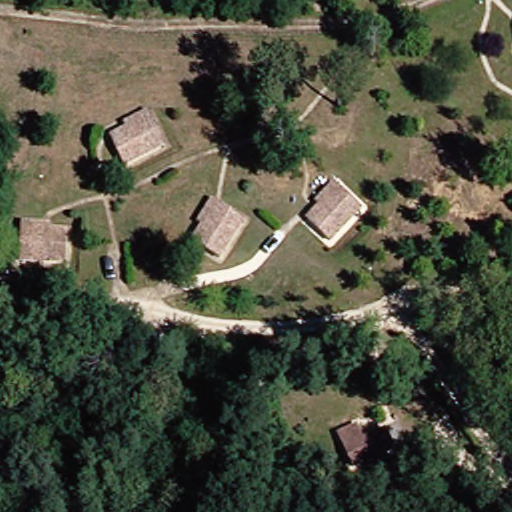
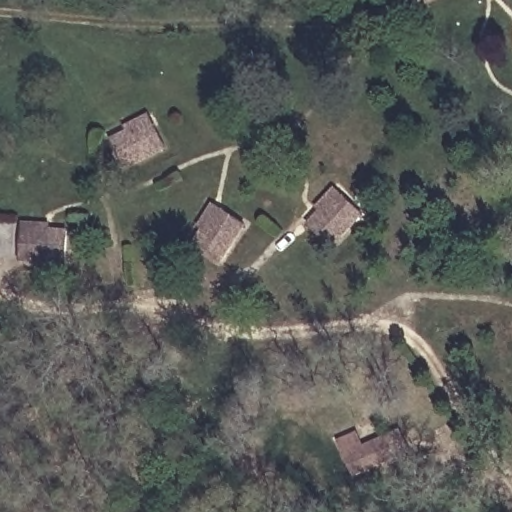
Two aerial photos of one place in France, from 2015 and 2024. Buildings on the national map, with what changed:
unchanged [(118,164),(104,134),(119,128),(117,122),(143,111),(148,121),(158,144),(118,164)]
unchanged [(324,245),(301,222),(314,210),(310,205),(331,187),(338,194),(356,214),(324,245)]
unchanged [(211,256),(186,239),(195,224),(191,222),(207,198),(216,203),(238,220),(211,256)]
unchanged [(59,258),(12,256),(14,229),(15,217),(43,219),(43,225),(59,227),(59,258)]
unchanged [(359,473),(344,438),(362,431),(368,445),(392,437),(400,457),(359,473)]

